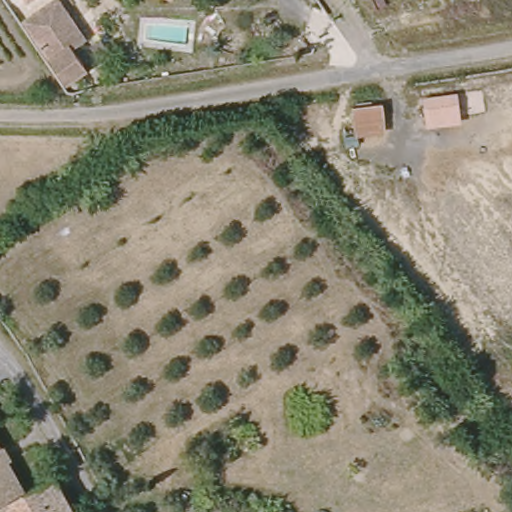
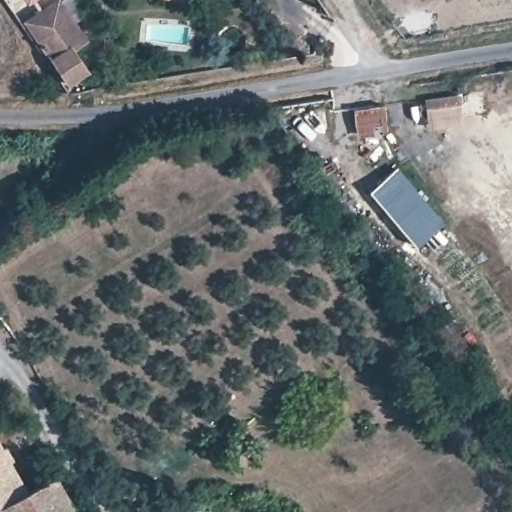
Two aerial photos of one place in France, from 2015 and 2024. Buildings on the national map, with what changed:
unchanged [(45,55),(21,16),(47,0),(65,0),(86,35),(70,41),(85,69),(60,82),(45,55)]
new [(26,0),(33,0),(28,3),(26,0)]
unchanged [(459,93),(461,123),(426,127),(425,97),(459,93)]
unchanged [(384,106),(385,133),(356,137),(353,110),(384,106)]
new [(397,166),(445,222),(416,246),(369,191),(397,166)]
unchanged [(32,486),(3,503),(0,498),(0,429),(32,486)]
unchanged [(83,512),(8,512),(3,503),(32,486),(60,470),(83,512)]

